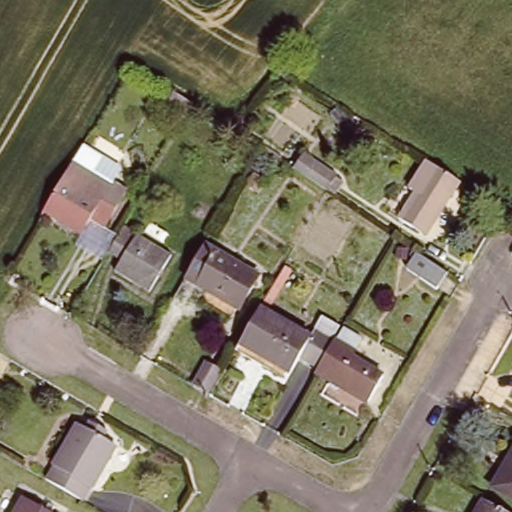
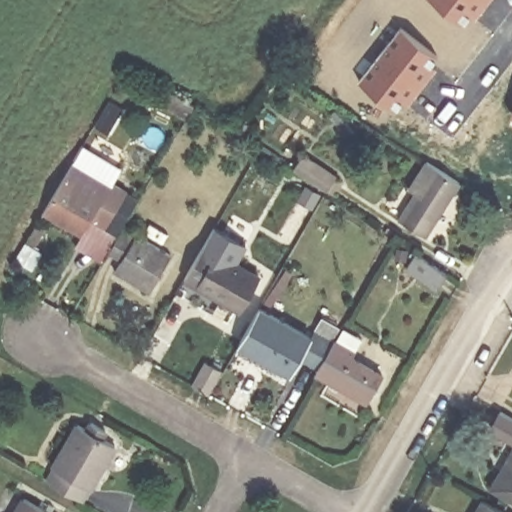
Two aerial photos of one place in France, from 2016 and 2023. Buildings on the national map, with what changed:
new [(479,11),(475,7),(462,22),(434,0),(488,0),(479,11)]
new [(400,26),(437,55),(425,70),(430,74),(412,97),(407,94),(395,109),(358,80),(400,26)]
unchanged [(200,109),(190,125),(170,112),(179,96),(200,109)]
new [(512,112),(512,114),(511,114),(512,112)]
unchanged [(340,177),(331,191),(300,169),(309,155),(340,177)]
unchanged [(78,157),(125,186),(102,223),(92,216),(84,229),(50,206),(78,157)]
unchanged [(420,230),(407,220),(423,196),(412,189),(430,161),(464,182),(442,215),(427,235),(420,230)]
unchanged [(170,253),(148,288),(120,270),(125,260),(113,254),(129,228),(170,253)]
unchanged [(258,275),(238,307),(186,276),(207,242),(258,275)]
unchanged [(448,275),(440,285),(412,265),(420,255),(448,275)]
unchanged [(322,368),(303,356),(294,372),(243,342),(265,307),(318,339),(320,333),(337,345),(322,368)]
unchanged [(360,360),(356,367),(382,385),(370,402),(322,370),(322,368),(337,345),(360,360)]
unchanged [(225,368),(212,389),(197,380),(208,356),(225,368)]
unchanged [(83,423),(89,427),(95,418),(110,427),(104,436),(116,443),(85,497),(52,477),(83,423)]
unchanged [(512,460),(512,498),(495,488),(512,460)]
unchanged [(44,506),(47,501),(60,509),(58,512),(22,512),(30,498),(44,506)]
unchanged [(497,512),(478,512),(483,503),(497,512)]

